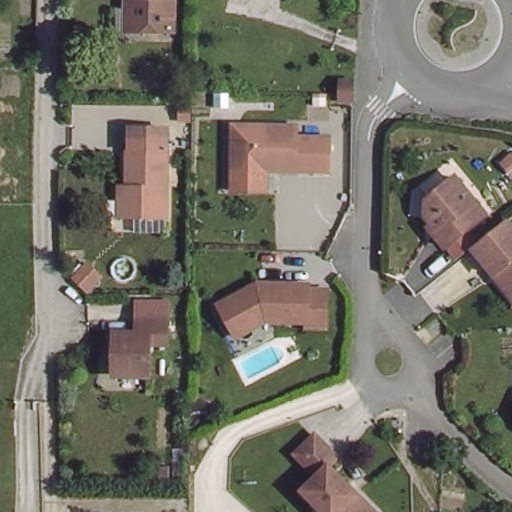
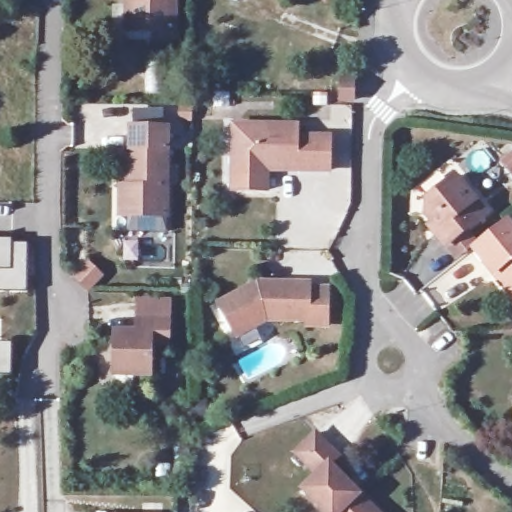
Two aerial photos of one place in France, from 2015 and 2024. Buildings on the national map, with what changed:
unchanged [(173,0),(173,34),(134,34),(125,35),(126,0),(173,0)]
unchanged [(340,105),(338,84),(350,83),(350,104),(340,105)]
unchanged [(300,122),(300,134),(333,134),(333,168),(262,168),(262,172),(236,173),(236,123),(300,122)]
unchanged [(115,189),(124,189),(123,152),(126,152),(126,131),(162,131),(161,220),(124,219),(116,219),(115,189)]
unchanged [(486,208),(446,241),(435,227),(438,224),(426,208),(428,194),(457,173),(486,208)]
unchanged [(512,281),(503,271),(498,276),(476,251),(510,223),(512,225),(512,281)]
new [(25,292),(0,292),(0,239),(11,239),(11,245),(26,245),(25,292)]
unchanged [(325,324),(306,324),(305,319),(253,318),(232,328),(220,301),(260,281),(307,282),(307,287),(325,288),(325,324)]
unchanged [(173,315),(175,342),(156,342),(157,373),(122,372),(122,332),(143,332),(144,315),(173,315)]
unchanged [(304,488),(318,474),(296,452),(315,432),(337,454),(330,462),(361,492),(362,493),(381,512),(329,512),(304,488)]

